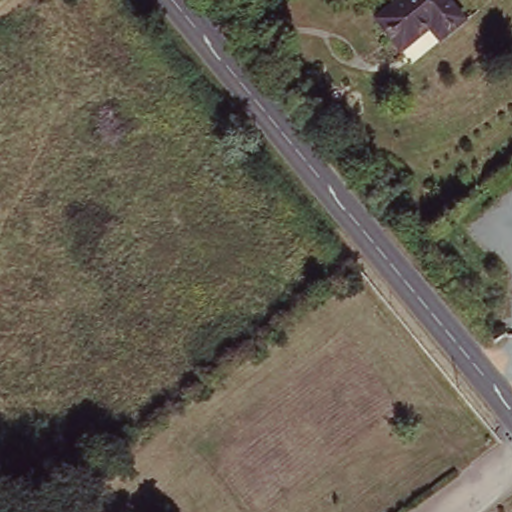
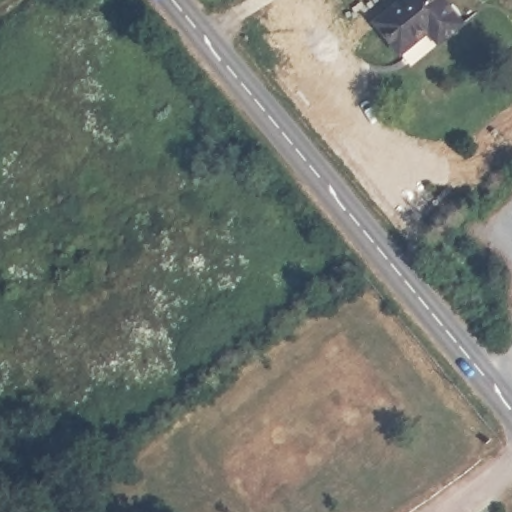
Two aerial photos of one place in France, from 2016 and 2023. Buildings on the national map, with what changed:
unchanged [(394,0),(440,0),(454,18),(403,63),(369,21),(394,0)]

